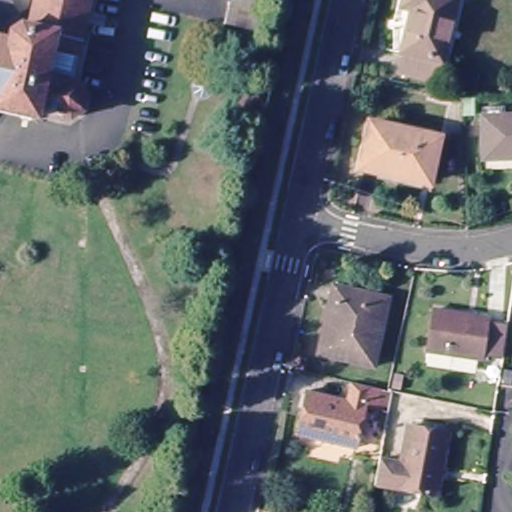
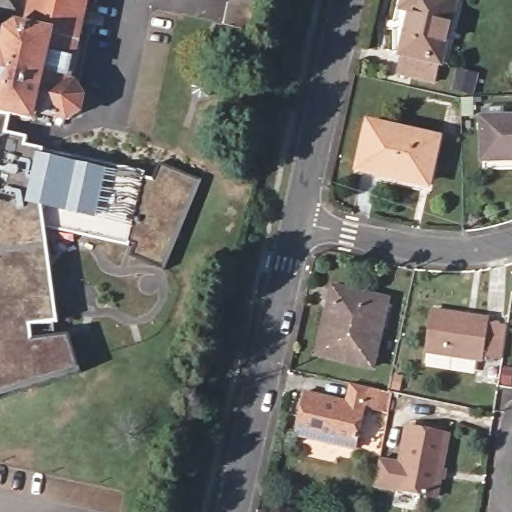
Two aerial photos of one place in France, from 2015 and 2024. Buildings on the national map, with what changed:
unchanged [(21,32),(29,30),(37,31),(43,0),(96,0),(80,81),(89,82),(99,94),(95,111),(81,116),(52,111),(50,119),(13,111),(7,110),(7,102),(0,101),(0,36),(19,40),(21,32)]
unchanged [(256,12),(262,12),(257,35),(222,27),(227,5),(228,0),(259,0),(256,12)]
unchanged [(447,67),(442,67),(438,85),(407,77),(411,60),(407,59),(417,14),(407,12),(409,0),(445,0),(462,4),(447,67)]
unchanged [(5,115),(0,114),(0,101),(7,102),(5,115)]
new [(7,110),(13,111),(8,135),(27,139),(25,147),(144,172),(143,177),(154,182),(160,167),(199,184),(166,269),(132,257),(137,247),(130,243),(129,247),(44,227),(59,323),(53,324),(57,340),(66,340),(77,370),(0,391),(0,114),(5,115),(7,110)]
unchanged [(382,177),(383,172),(363,168),(372,127),(441,143),(437,162),(442,163),(436,186),(423,182),(423,187),(382,177)]
unchanged [(512,127),(512,167),(482,168),(482,127),(512,127)]
unchanged [(387,297),(373,366),(320,353),(323,334),(330,302),(333,285),(387,297)]
unchanged [(483,362),(428,355),(433,312),(488,320),(488,325),(504,327),(500,359),(497,358),(496,363),(483,362)]
unchanged [(350,452),(292,439),(303,396),(342,405),(347,387),(373,393),(383,396),(389,397),(386,415),(370,412),(360,410),(350,452)]
unchanged [(403,467),(410,431),(451,438),(438,502),(376,492),(382,463),(403,467)]

